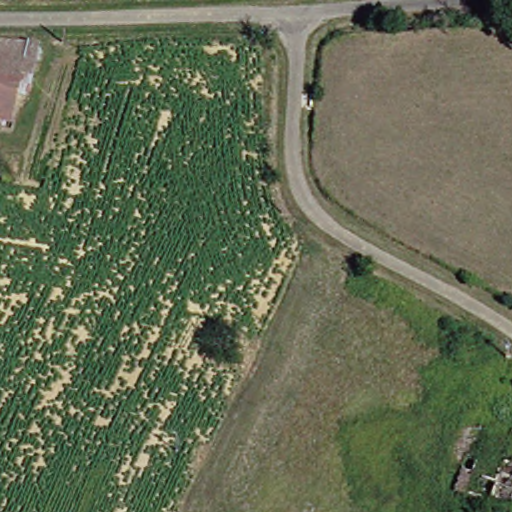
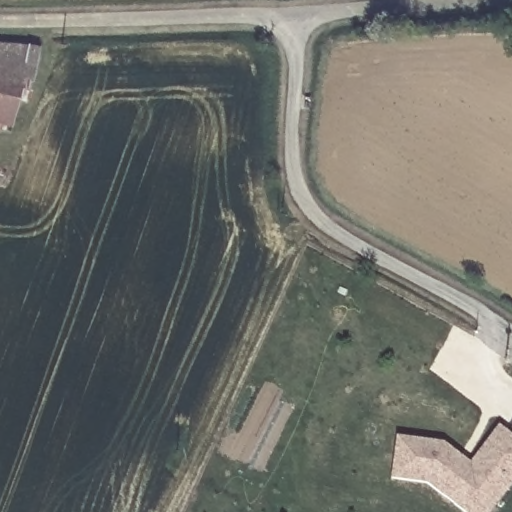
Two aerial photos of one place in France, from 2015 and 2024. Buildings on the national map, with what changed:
unchanged [(0,46),(38,42),(30,81),(19,125),(0,122),(0,46)]
new [(427,480),(394,476),(398,435),(448,442),(464,455),(470,462),(501,425),(512,435),(512,446),(494,466),(506,476),(497,486),(491,480),(464,510),(427,480)]
new [(491,480),(497,486),(506,476),(494,466),(512,446),(512,480),(484,512),(467,512),(464,510),(491,480)]

